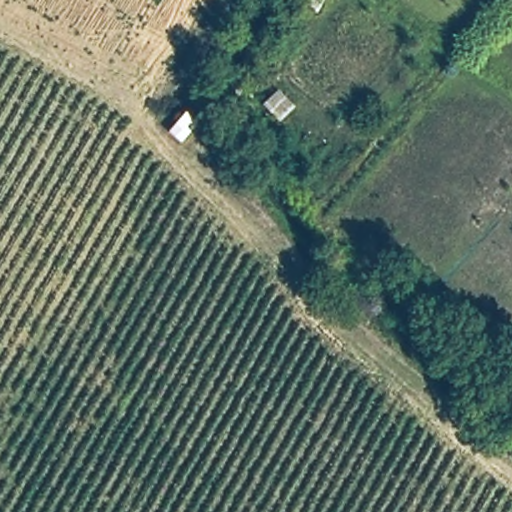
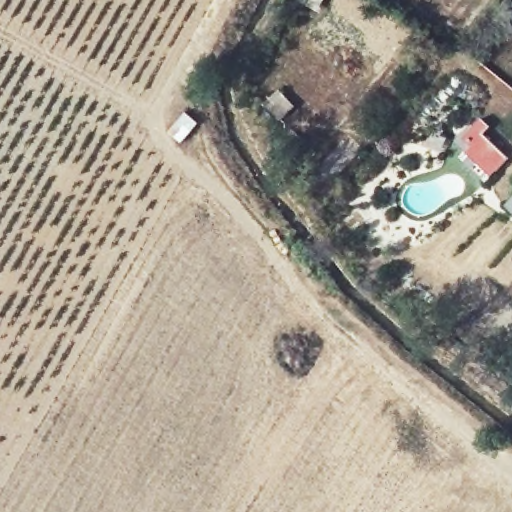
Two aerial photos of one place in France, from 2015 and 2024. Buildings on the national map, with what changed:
unchanged [(197,123),(180,144),(163,129),(183,109),(197,123)]
new [(490,178),(462,151),(467,146),(460,140),(480,118),(490,126),(483,134),(508,157),(490,178)]
new [(512,214),(503,204),(512,195),(512,214)]

